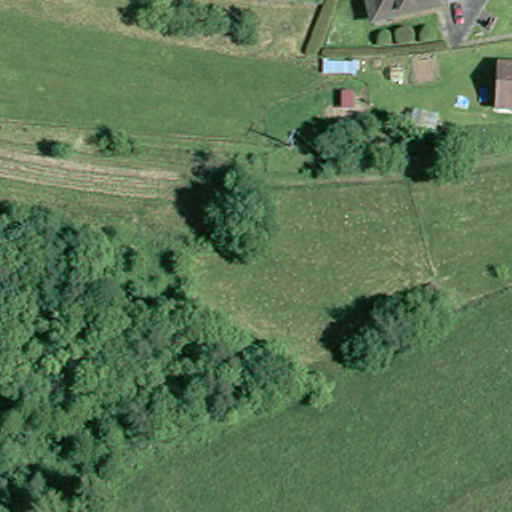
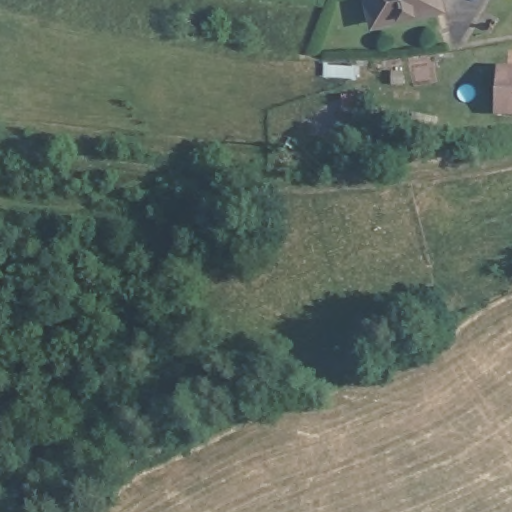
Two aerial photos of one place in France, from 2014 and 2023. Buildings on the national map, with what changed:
unchanged [(442,4),(374,27),(365,0),(440,0),(442,4)]
unchanged [(506,67),(512,67),(512,112),(499,111),(506,67)]

